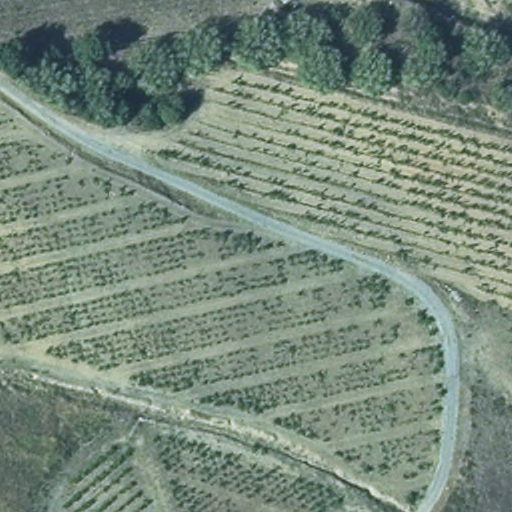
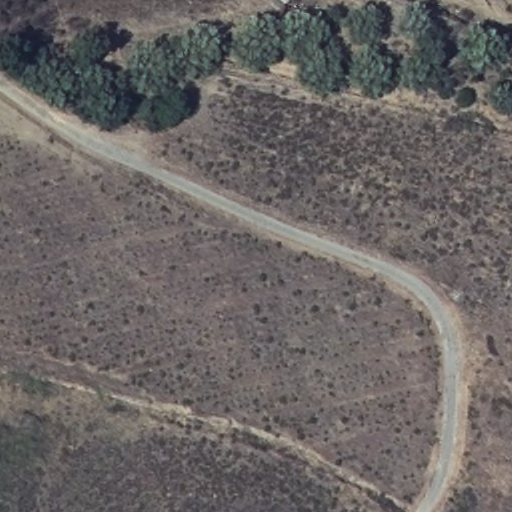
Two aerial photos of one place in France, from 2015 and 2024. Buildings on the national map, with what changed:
unchanged [(287,8),(286,0),(298,0),(299,3),(287,8)]

